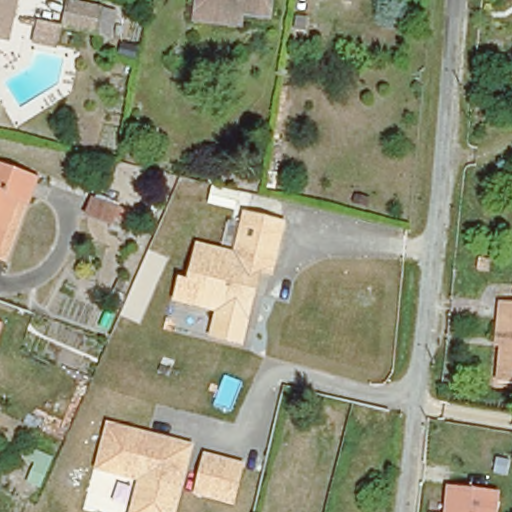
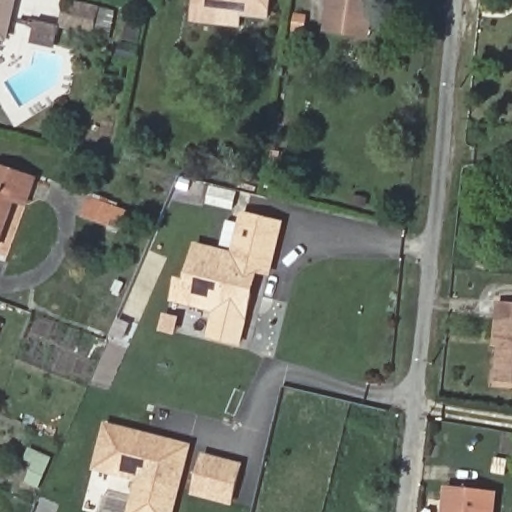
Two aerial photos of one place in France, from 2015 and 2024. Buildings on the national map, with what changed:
unchanged [(17,0),(10,32),(0,30),(0,0),(17,0)]
unchanged [(83,0),(110,6),(104,31),(73,24),(78,0),(83,0)]
unchanged [(191,0),(264,0),(263,11),(246,9),(239,9),(237,24),(209,21),(189,19),(190,11),(191,0)]
new [(324,32),(329,0),(374,0),(369,40),(324,32)]
unchanged [(14,193),(0,234),(0,160),(35,170),(33,179),(27,197),(14,193)]
unchanged [(114,235),(84,223),(95,201),(124,214),(114,235)]
unchanged [(234,252),(244,210),(290,222),(276,278),(261,275),(243,348),(208,339),(216,313),(171,303),(179,278),(190,281),(198,244),(234,252)]
unchanged [(506,341),(498,340),(501,296),(512,297),(512,377),(503,376),(506,341)]
unchanged [(3,320),(0,330),(0,319),(3,320)]
unchanged [(197,444),(179,512),(127,512),(135,483),(94,473),(107,421),(197,444)]
unchanged [(248,463),(236,506),(194,496),(205,453),(248,463)]
unchanged [(492,492),(490,512),(447,512),(450,488),(492,492)]

